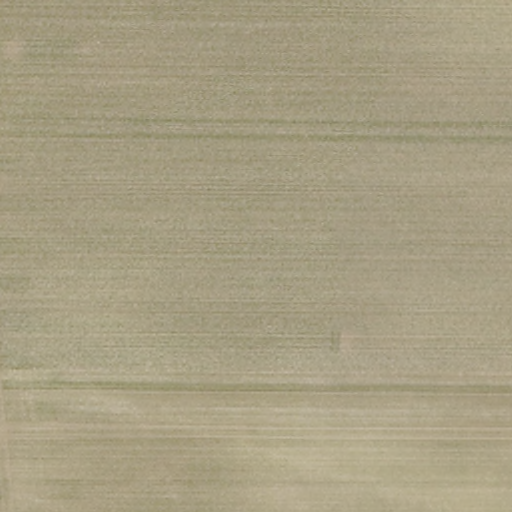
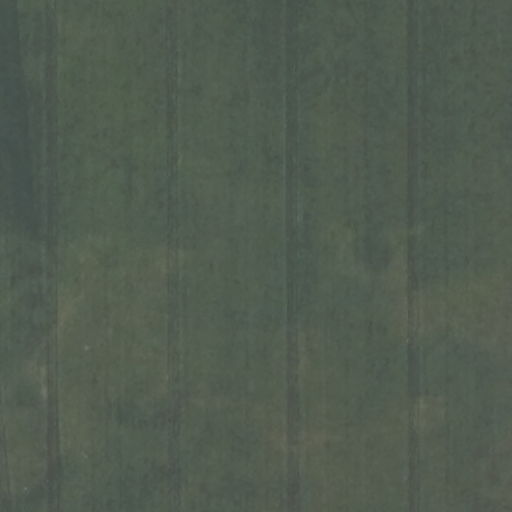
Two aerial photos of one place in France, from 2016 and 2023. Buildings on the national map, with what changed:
[]

